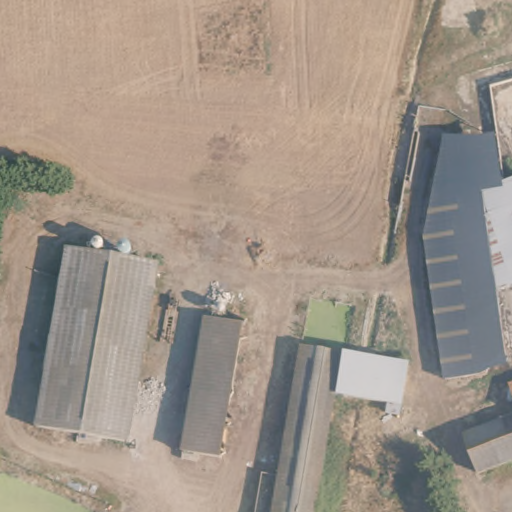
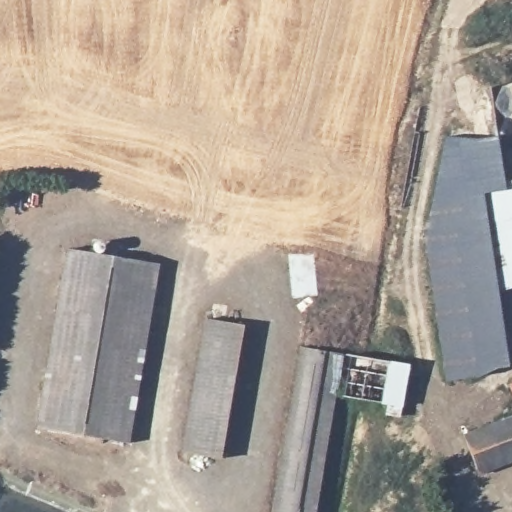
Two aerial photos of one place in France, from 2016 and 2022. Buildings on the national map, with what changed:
unchanged [(507,368),(477,378),(443,381),(423,239),(444,136),(498,139),(503,183),(512,179),(512,288),(497,294),(507,368)]
unchanged [(155,267),(124,439),(30,422),(62,249),(155,267)]
unchanged [(242,333),(217,462),(180,454),(205,325),(242,333)]
unchanged [(341,353),(335,391),(311,512),(268,512),(298,344),(341,353)]
unchanged [(406,366),(400,403),(335,391),(341,353),(406,366)]
unchanged [(512,462),(490,471),(473,432),(512,416),(512,462)]

